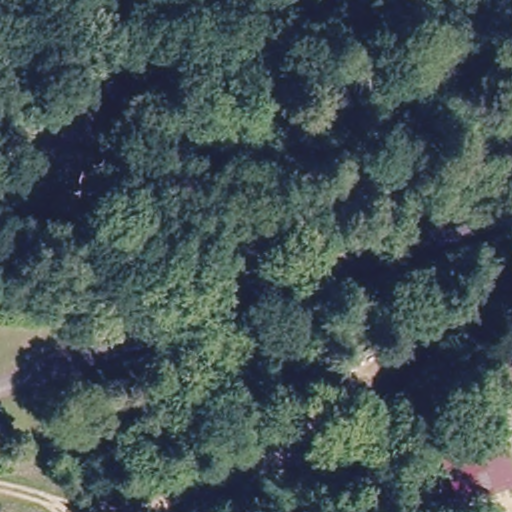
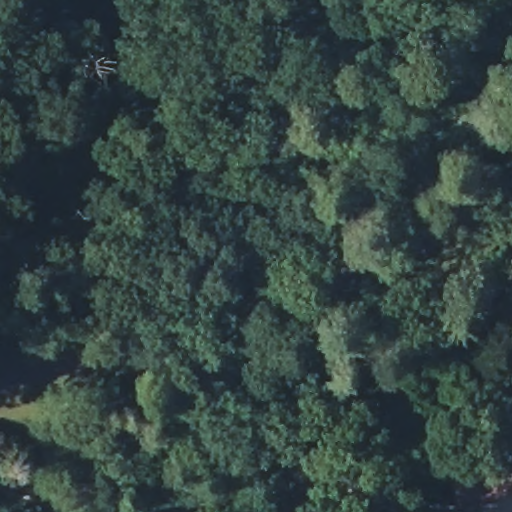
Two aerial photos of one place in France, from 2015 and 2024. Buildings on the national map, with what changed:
unchanged [(446,441),(501,422),(512,458),(512,489),(465,503),(446,441)]

